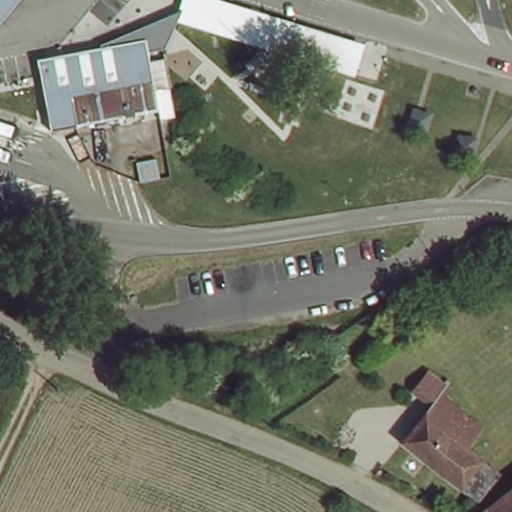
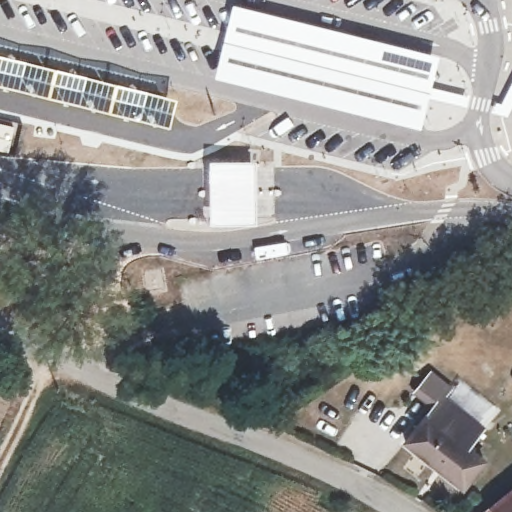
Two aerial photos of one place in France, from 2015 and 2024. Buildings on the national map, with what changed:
demolished [(0,27),(0,0),(21,0),(0,27)]
new [(464,106),(427,97),(420,129),(214,78),(232,4),(437,57),(430,87),(466,96),(464,106)]
demolished [(142,34),(158,105),(51,129),(38,55),(142,34)]
new [(256,160),(257,224),(209,225),(207,160),(256,160)]
unchanged [(476,500),(461,487),(405,437),(433,405),(413,387),(430,368),(450,386),(442,394),(480,430),(465,446),(483,462),(497,474),(476,500)]
unchanged [(512,512),(478,512),(512,484),(512,512)]

